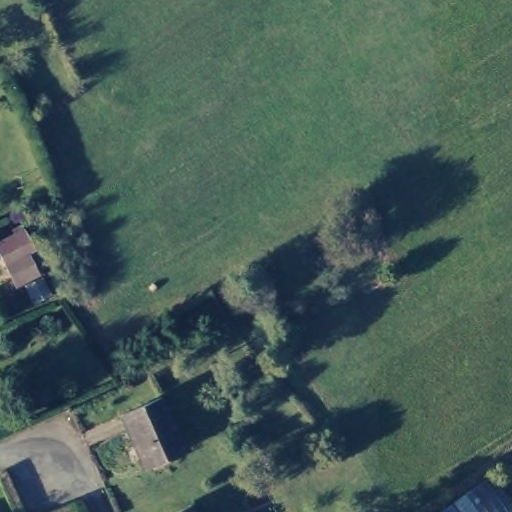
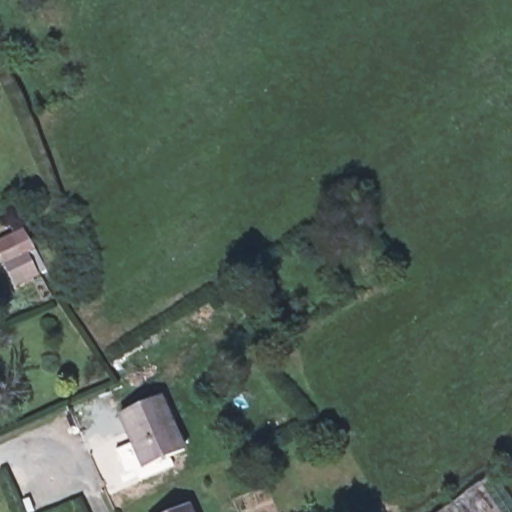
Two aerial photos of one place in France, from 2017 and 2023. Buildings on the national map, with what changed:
unchanged [(37,272),(17,281),(0,250),(0,244),(18,235),(37,272)]
unchanged [(152,393),(179,450),(141,467),(115,410),(152,393)]
unchanged [(482,478),(503,512),(429,512),(482,478)]
unchanged [(188,508),(190,512),(178,512),(188,508)]

